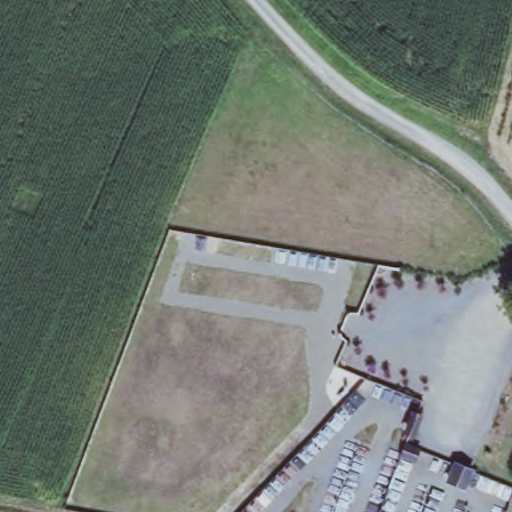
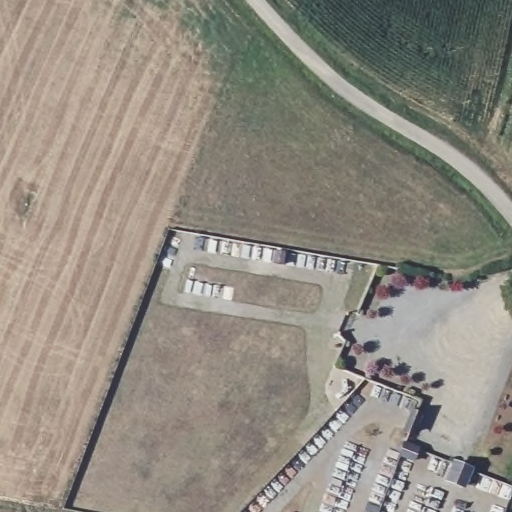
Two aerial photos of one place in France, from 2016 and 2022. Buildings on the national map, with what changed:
unchanged [(469,491),(448,480),(455,459),(467,463),(478,468),(469,491)]

